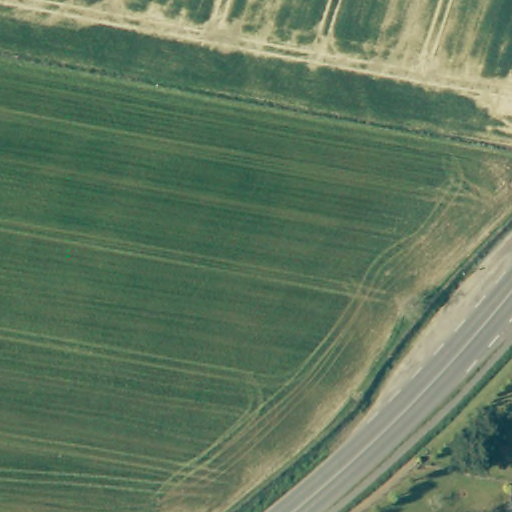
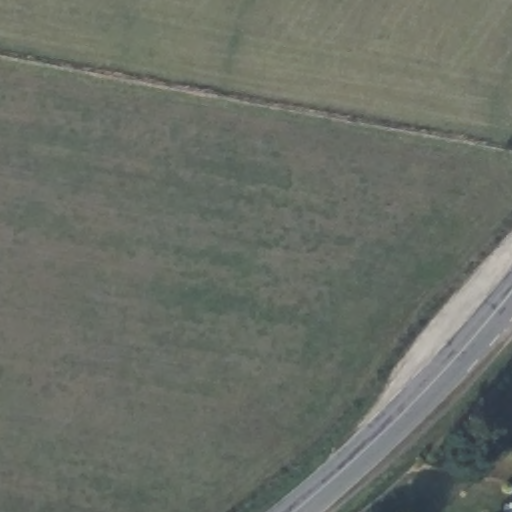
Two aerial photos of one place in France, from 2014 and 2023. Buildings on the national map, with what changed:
unchanged [(512,495),(512,512),(508,512),(512,495)]

